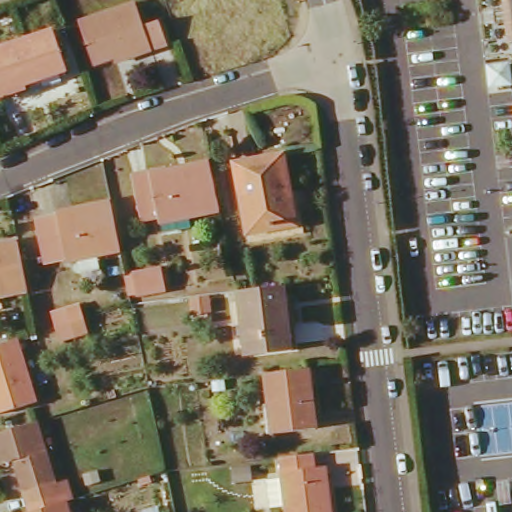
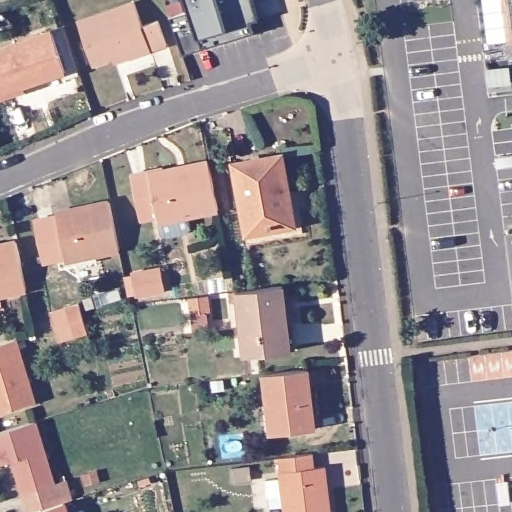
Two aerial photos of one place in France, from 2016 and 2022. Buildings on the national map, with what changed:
new [(184,54),(172,16),(192,11),(187,0),(252,0),(259,19),(250,22),(252,32),(184,54)]
unchanged [(78,19),(135,1),(143,24),(160,19),(167,44),(153,48),(136,55),(134,51),(91,65),(78,19)]
unchanged [(51,32),(64,74),(0,93),(0,48),(51,32)]
unchanged [(236,165),(280,157),(292,224),(246,232),(236,165)]
unchanged [(128,178),(145,175),(146,179),(206,166),(217,214),(156,226),(154,219),(136,223),(128,178)]
unchanged [(57,214),(110,202),(120,248),(66,260),(57,214)]
unchanged [(13,241),(23,290),(0,295),(0,244),(13,241)]
unchanged [(130,287),(158,281),(161,297),(134,304),(130,287)]
unchanged [(230,306),(240,303),(239,296),(282,290),(286,325),(282,326),(285,351),(248,357),(242,321),(234,323),(230,306)]
unchanged [(184,303),(203,301),(205,314),(187,317),(184,303)]
unchanged [(54,347),(50,332),(61,329),(57,315),(75,311),(78,324),(82,337),(54,347)]
unchanged [(11,344),(31,408),(0,417),(0,347),(11,344)]
unchanged [(261,374),(304,367),(313,425),(271,431),(261,374)]
unchanged [(0,466),(0,434),(33,425),(51,484),(66,481),(73,503),(64,506),(42,512),(25,512),(11,464),(0,466)]
unchanged [(310,452),(313,467),(322,466),(330,512),(285,512),(275,457),(310,452)]
unchanged [(42,512),(64,506),(66,512),(42,512)]

